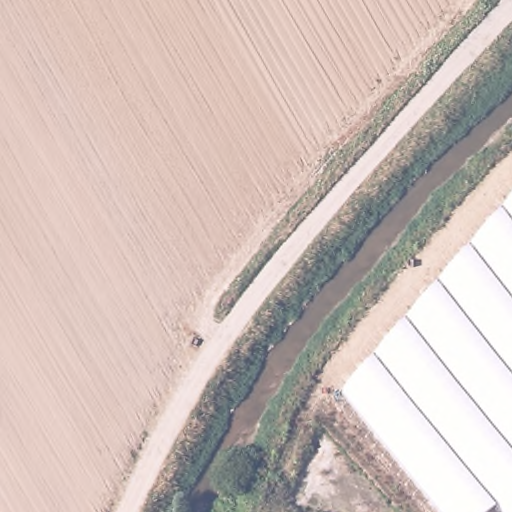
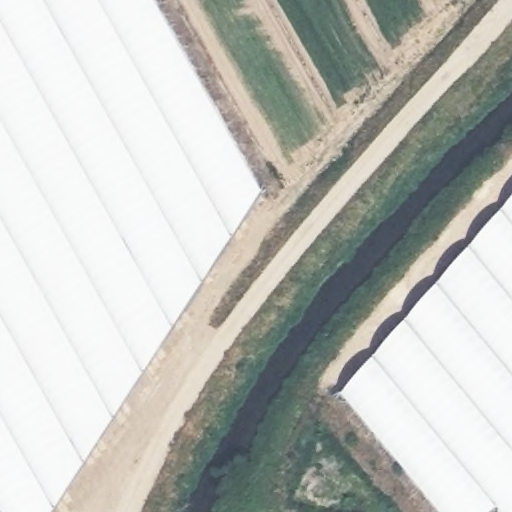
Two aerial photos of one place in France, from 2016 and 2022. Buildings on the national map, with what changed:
new [(263,191),(50,512),(7,512),(0,500),(0,0),(156,0),(263,191)]
unchanged [(502,512),(496,504),(488,512),(442,512),(344,391),(512,199),(512,512),(502,512)]

